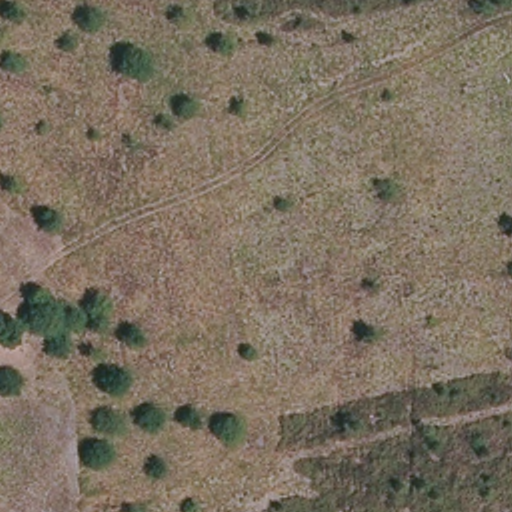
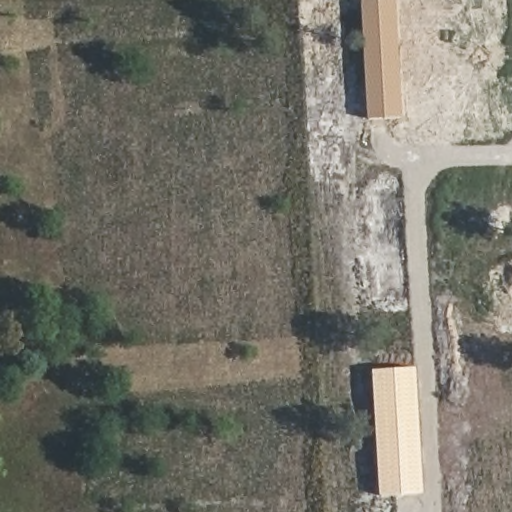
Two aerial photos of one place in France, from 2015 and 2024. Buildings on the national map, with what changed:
new [(403,116),(368,118),(361,0),(396,0),(403,116)]
new [(380,495),(372,370),(416,368),(424,493),(380,495)]

